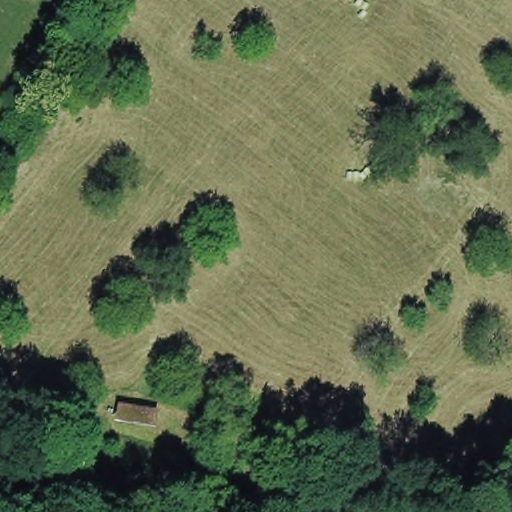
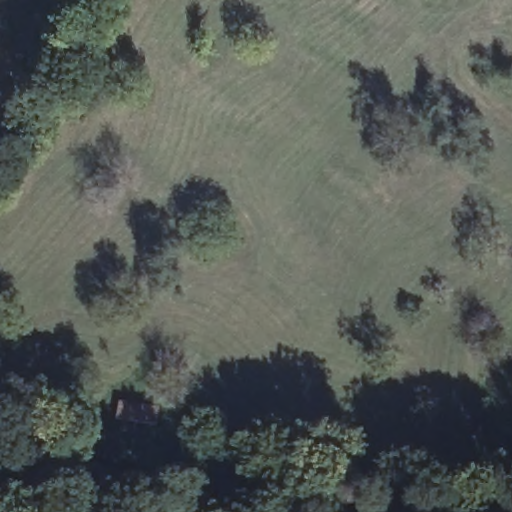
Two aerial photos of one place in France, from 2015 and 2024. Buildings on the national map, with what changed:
unchanged [(117,397),(169,403),(169,424),(117,420),(117,397)]

